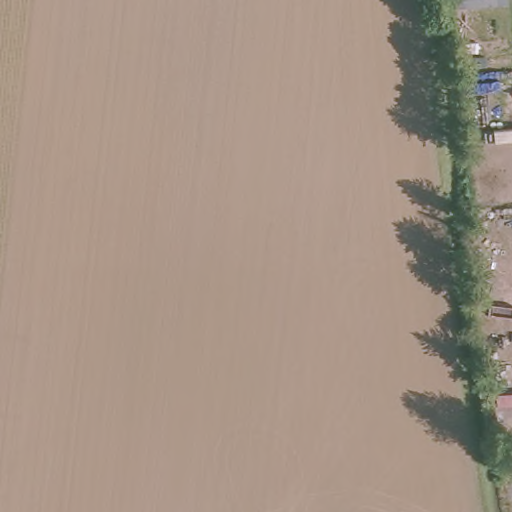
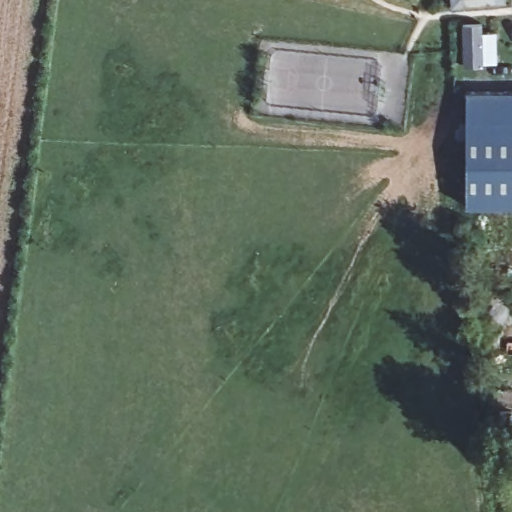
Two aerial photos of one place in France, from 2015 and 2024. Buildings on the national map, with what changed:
new [(467,90),(512,90),(512,205),(468,205),(467,90)]

